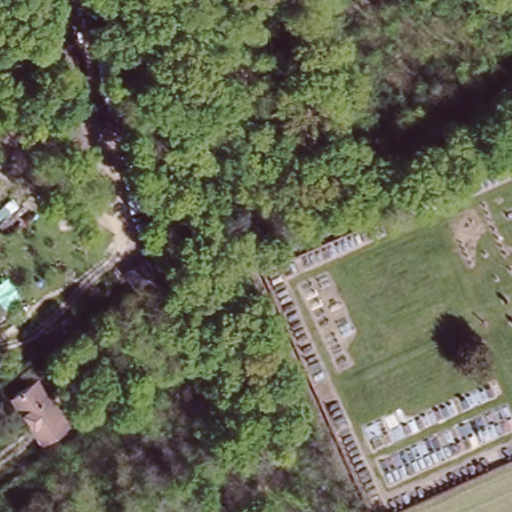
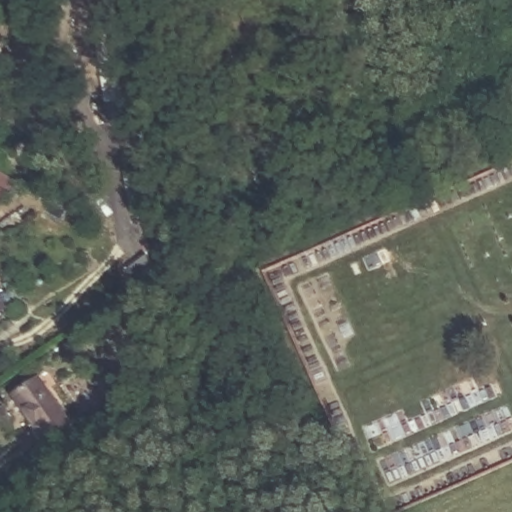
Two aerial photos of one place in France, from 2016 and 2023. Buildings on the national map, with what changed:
unchanged [(7,306),(0,311),(0,297),(7,306)]
unchanged [(75,421),(42,443),(10,397),(41,376),(75,421)]

